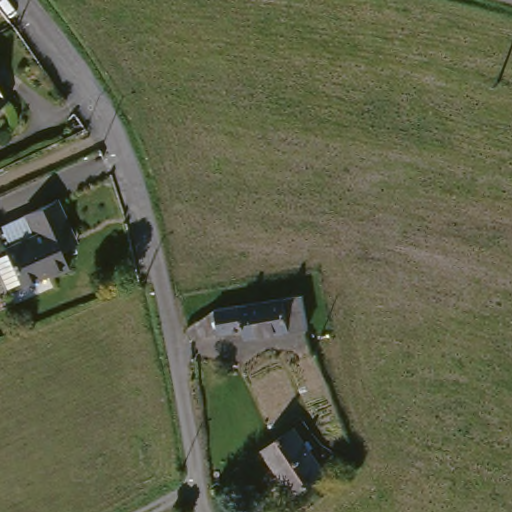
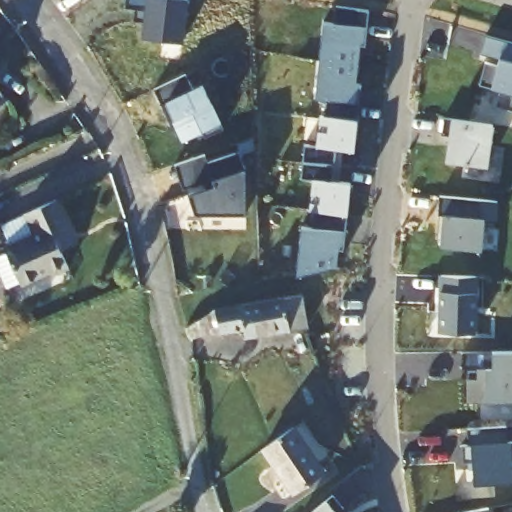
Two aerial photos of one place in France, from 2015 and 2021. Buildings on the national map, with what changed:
new [(133,22),(134,10),(126,10),(127,0),(184,0),(188,0),(183,44),(141,39),(143,23),(133,22)]
new [(297,277),(302,228),(312,228),(313,213),(309,212),(313,180),(302,179),(304,146),(317,147),(319,116),(325,117),(327,99),(316,98),(324,22),(335,24),(335,7),(368,12),(364,49),(361,48),(357,85),(361,85),(357,120),(353,152),(343,151),(339,181),(350,184),(347,217),(343,252),(339,251),(336,270),(297,277)]
new [(496,106),(500,90),(492,88),(480,85),(486,63),(497,68),(500,58),(482,54),(486,37),(512,45),(512,111),(496,106)]
new [(154,89),(184,76),(192,90),(203,85),(212,103),(222,123),(222,124),(182,142),(176,129),(173,130),(154,89)]
unchanged [(0,104),(0,82),(10,97),(0,104)]
new [(452,120),(493,126),(487,167),(446,161),(449,136),(442,135),(444,119),(452,120)]
new [(206,155),(208,163),(239,153),(244,171),(244,215),(196,214),(189,194),(205,190),(204,184),(184,191),(175,166),(206,155)]
unchanged [(0,248),(14,242),(44,229),(34,209),(66,195),(82,229),(87,238),(70,246),(78,263),(60,271),(59,268),(31,280),(28,272),(14,278),(0,248)]
new [(444,215),(438,216),(439,197),(498,203),(496,216),(483,217),(480,251),(441,248),(444,215)]
new [(439,278),(476,279),(474,334),(439,334),(439,278)]
unchanged [(204,312),(214,305),(265,297),(302,291),(307,324),(244,333),(243,326),(239,327),(240,330),(227,332),(227,329),(208,331),(190,334),(187,325),(189,323),(204,312)]
new [(467,370),(464,370),(464,353),(493,354),(512,354),(512,402),(486,402),(467,403),(467,370)]
unchanged [(304,424),(334,467),(302,489),(272,446),(304,424)]
new [(507,427),(508,441),(511,441),(511,444),(512,444),(512,461),(512,466),(512,482),(474,484),(472,462),(463,463),(462,446),(469,445),(468,431),(507,427)]
new [(326,501),(335,512),(313,512),(326,501)]
new [(488,509),(488,512),(474,512),(488,509)]

